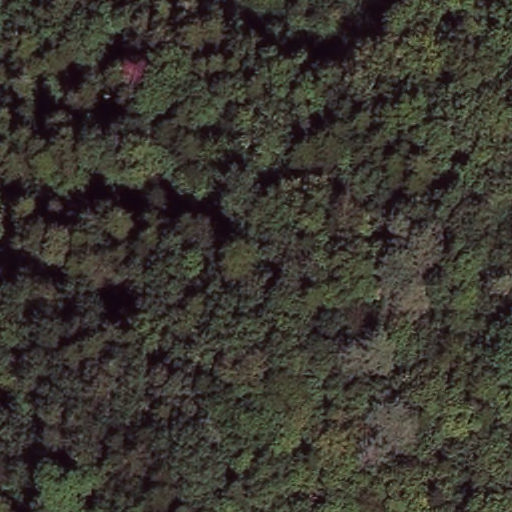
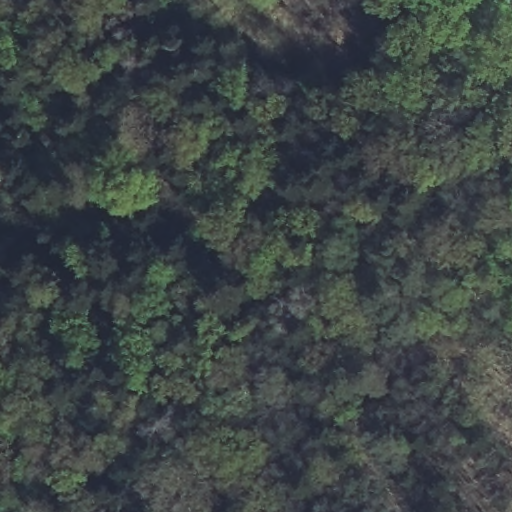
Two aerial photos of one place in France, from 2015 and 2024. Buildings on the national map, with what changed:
[]

